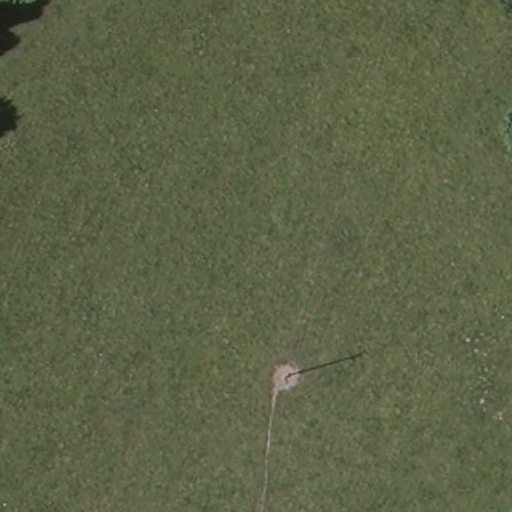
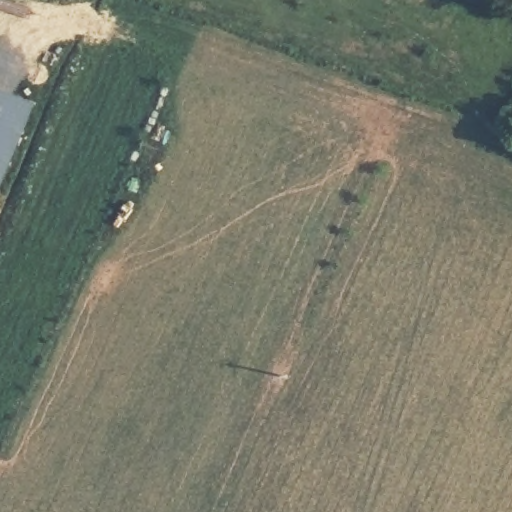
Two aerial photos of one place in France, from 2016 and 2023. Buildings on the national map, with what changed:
new [(0,194),(0,80),(41,95),(0,194)]

